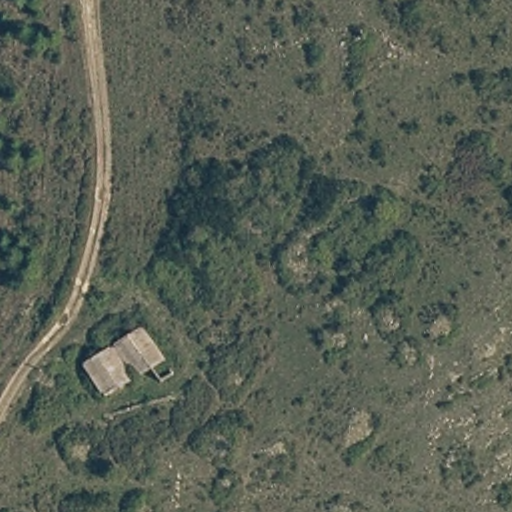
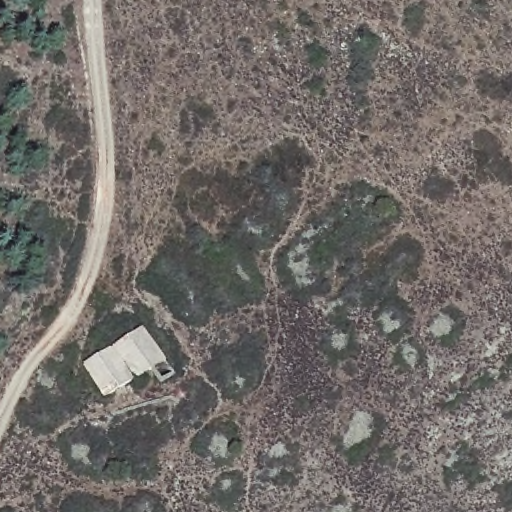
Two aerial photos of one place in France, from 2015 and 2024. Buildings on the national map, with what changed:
unchanged [(145,323),(168,360),(104,400),(80,364),(145,323)]

